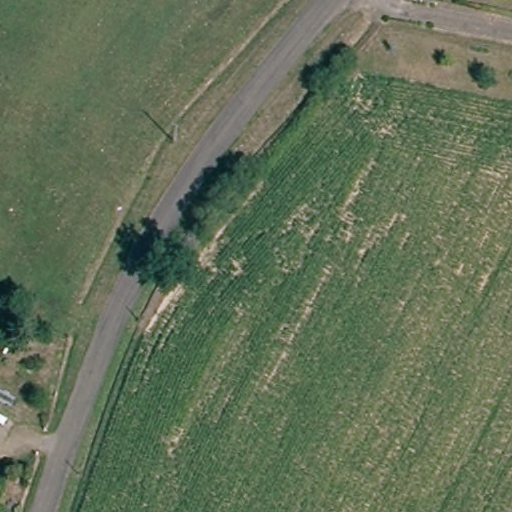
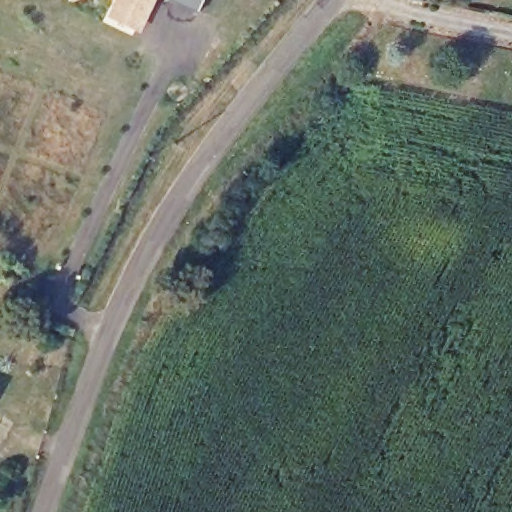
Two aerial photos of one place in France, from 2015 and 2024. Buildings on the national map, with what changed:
new [(119,11),(125,0),(148,0),(147,1),(153,5),(144,24),(140,33),(115,21),(119,11)]
new [(171,2),(166,0),(208,0),(200,16),(171,2)]

